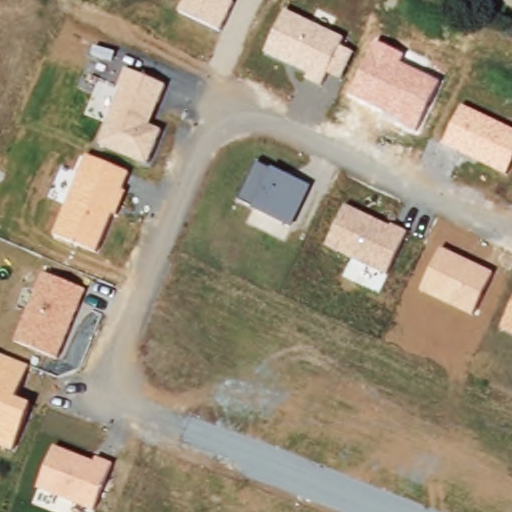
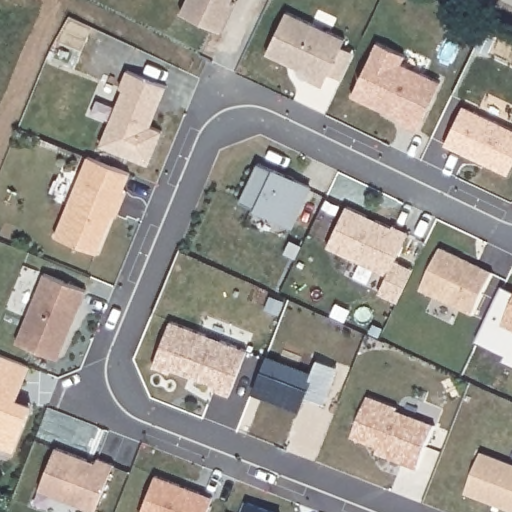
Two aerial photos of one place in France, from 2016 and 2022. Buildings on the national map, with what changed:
unchanged [(186,0),(230,0),(236,3),(221,33),(181,13),(186,0)]
unchanged [(286,11),(345,38),(342,46),(355,53),(343,80),(329,72),(323,85),(307,78),(311,72),(267,53),(286,11)]
unchanged [(377,43),(405,56),(401,66),(441,83),(417,132),(400,125),(402,119),(354,97),(377,43)]
unchanged [(148,164),(102,143),(124,91),(119,89),(127,69),(167,86),(151,127),(162,132),(148,164)]
unchanged [(467,108),(512,130),(512,164),(508,174),(446,144),(464,106),(467,108)]
unchanged [(55,236),(88,157),(129,173),(97,254),(55,236)]
unchanged [(257,211),(240,201),(260,161),(275,169),(310,185),(289,227),(257,211)]
unchanged [(346,207),(407,234),(389,276),(327,245),(346,207)]
unchanged [(422,290),(443,248),(494,273),(474,316),(422,290)]
unchanged [(17,342),(45,274),(86,290),(58,359),(17,342)]
unchanged [(512,334),(503,330),(512,310),(512,334)]
new [(170,321),(247,350),(229,395),(213,389),(215,384),(171,367),(170,372),(153,366),(170,321)]
unchanged [(0,446),(0,355),(29,366),(18,398),(32,404),(14,452),(0,446)]
new [(267,359),(310,376),(317,359),(336,368),(322,404),(303,397),(298,408),(255,391),(267,359)]
new [(369,398),(398,409),(397,412),(435,427),(418,470),(377,454),(379,449),(353,438),(369,398)]
unchanged [(55,447),(96,463),(98,459),(113,465),(95,511),(41,489),(55,447)]
new [(512,465),(512,512),(511,512),(467,495),(483,454),(512,465)]
new [(213,497),(207,512),(141,512),(155,475),(213,497)]
new [(271,512),(245,512),(249,504),(271,512)]

